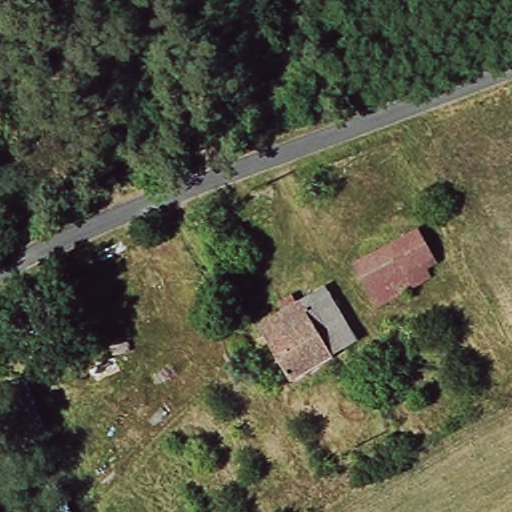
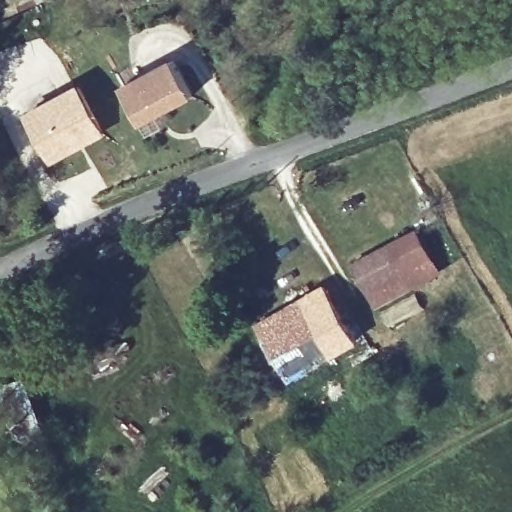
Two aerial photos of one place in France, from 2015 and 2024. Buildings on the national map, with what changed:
new [(193,97),(141,124),(119,84),(171,56),(193,97)]
new [(80,89),(104,134),(55,161),(30,116),(80,89)]
unchanged [(418,232),(442,269),(380,308),(357,271),(418,232)]
unchanged [(355,339),(295,380),(260,329),(320,288),(355,339)]

